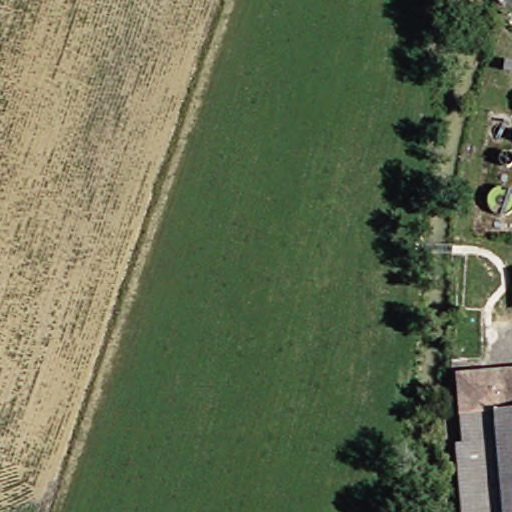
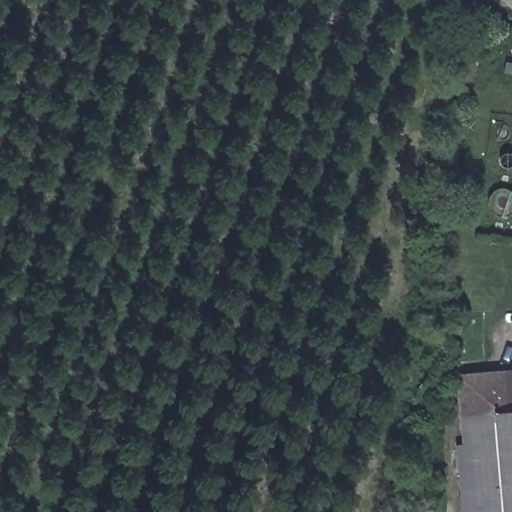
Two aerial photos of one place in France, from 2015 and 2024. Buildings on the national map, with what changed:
unchanged [(461,443),(467,442),(463,371),(512,368),(512,512),(465,512),(461,443)]

